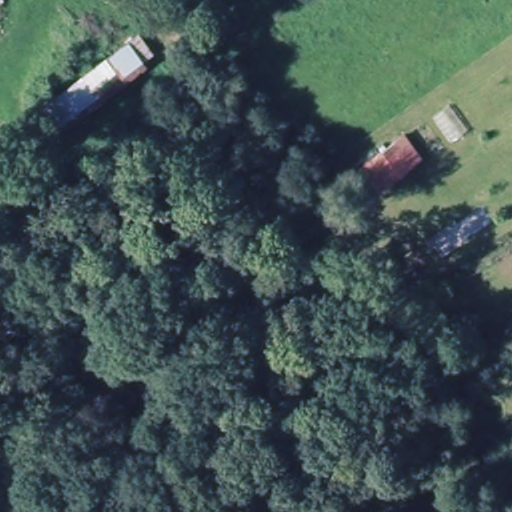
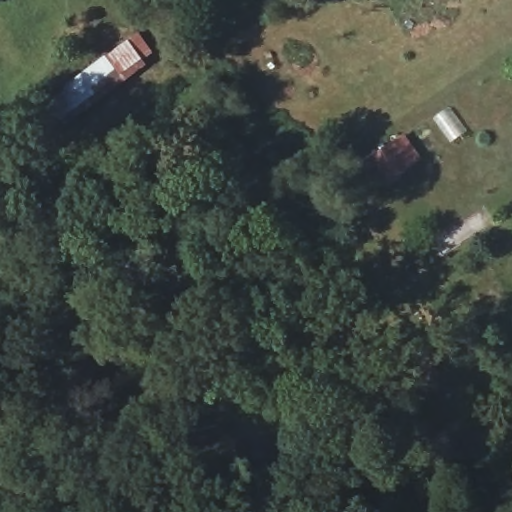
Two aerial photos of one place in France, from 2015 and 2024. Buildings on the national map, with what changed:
unchanged [(159,59),(64,129),(46,102),(138,32),(159,59)]
unchanged [(410,167),(389,182),(368,157),(390,142),(410,167)]

